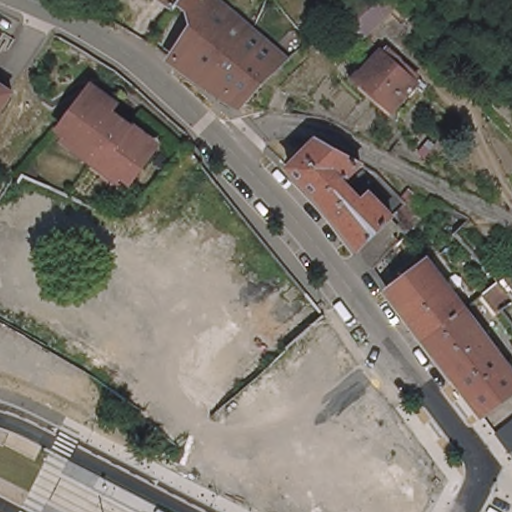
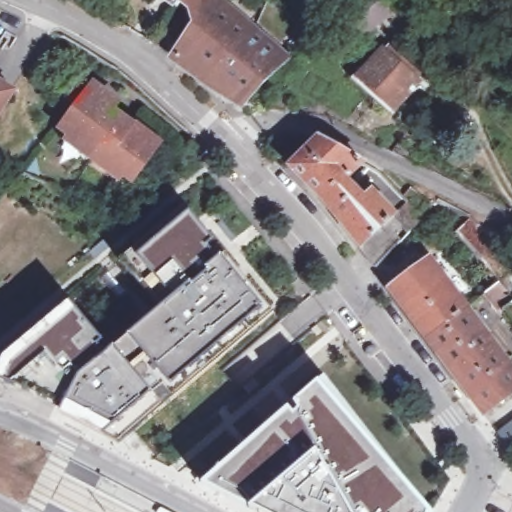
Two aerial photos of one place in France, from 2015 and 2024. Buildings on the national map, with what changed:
unchanged [(176,7),(167,0),(182,0),(181,0),(176,7)]
unchanged [(241,103),(208,82),(173,57),(192,33),(196,12),(181,0),(182,0),(226,0),(291,56),(241,103)]
unchanged [(403,35),(381,14),(364,29),(349,10),(359,0),(391,0),(414,22),(403,35)]
unchanged [(442,15),(431,27),(419,15),(430,3),(442,15)]
unchanged [(356,75),(378,49),(388,58),(393,54),(421,80),(413,89),(409,85),(391,105),(356,75)]
unchanged [(20,91),(0,122),(0,78),(20,91)]
unchanged [(284,85),(294,94),(285,110),(263,106),(284,85)]
unchanged [(102,165),(95,160),(88,154),(80,155),(65,145),(72,135),(63,128),(91,90),(101,90),(116,100),(118,111),(116,115),(132,126),(134,124),(149,135),(148,137),(160,146),(136,181),(126,174),(118,184),(103,172),(102,165)]
unchanged [(432,149),(427,143),(436,132),(441,137),(432,149)]
unchanged [(337,226),(331,219),(323,209),(290,173),(319,145),(321,145),(370,173),(406,211),(384,232),(398,246),(374,273),(337,226)]
new [(64,298),(68,302),(101,342),(95,348),(103,358),(113,350),(129,336),(161,310),(119,259),(183,207),(189,215),(210,240),(205,245),(218,260),(220,258),(224,255),(270,312),(169,395),(162,386),(150,395),(160,406),(115,443),(100,436),(61,416),(65,405),(58,402),(56,405),(0,381),(0,355),(64,298)]
unchanged [(427,333),(394,286),(433,257),(471,307),(432,339),(427,333)]
unchanged [(471,307),(512,362),(512,394),(486,414),(432,339),(471,307)]
new [(254,505),(316,451),(302,425),(288,407),(323,378),(344,401),(401,473),(434,512),(251,512),(250,511),(254,505)]
new [(288,407),(302,425),(316,451),(254,505),(250,511),(201,483),(288,407)]
unchanged [(512,422),(512,450),(499,432),(512,422)]

